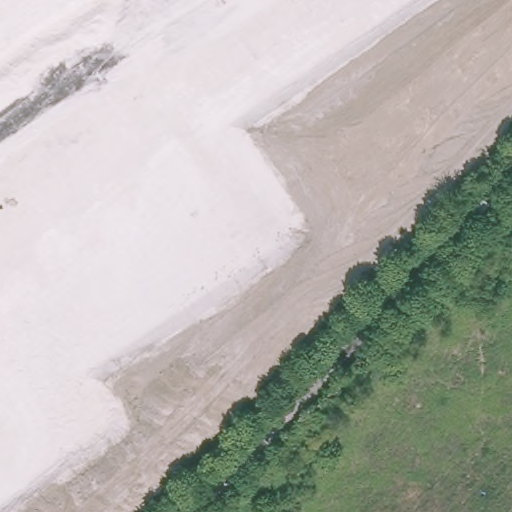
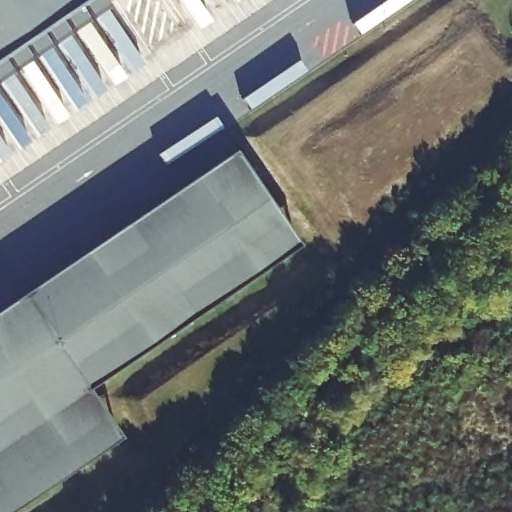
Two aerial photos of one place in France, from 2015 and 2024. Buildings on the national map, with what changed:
unchanged [(0,0),(101,0),(0,66),(0,0)]
new [(290,251),(85,388),(116,441),(0,511),(0,300),(215,159),(290,251)]

